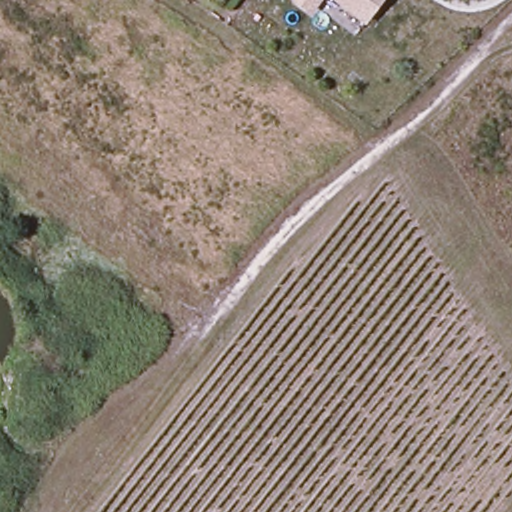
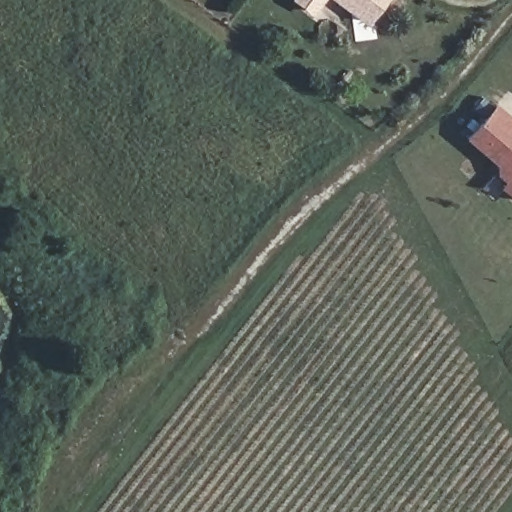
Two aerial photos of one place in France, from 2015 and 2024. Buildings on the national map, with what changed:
unchanged [(293,0),(326,0),(313,17),(293,0)]
unchanged [(331,0),(390,0),(367,27),(331,0)]
new [(507,180),(464,141),(495,102),(512,117),(512,198),(501,189),(507,180)]

